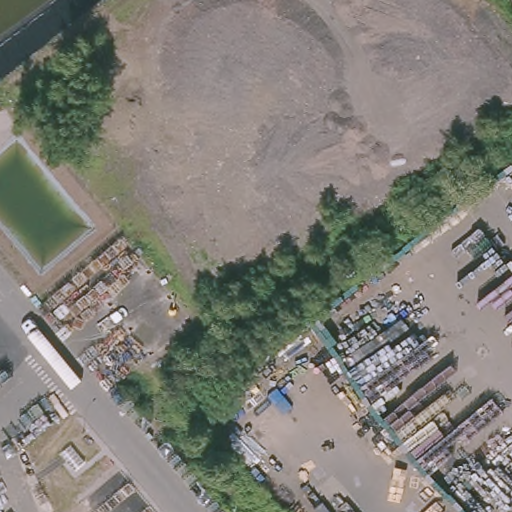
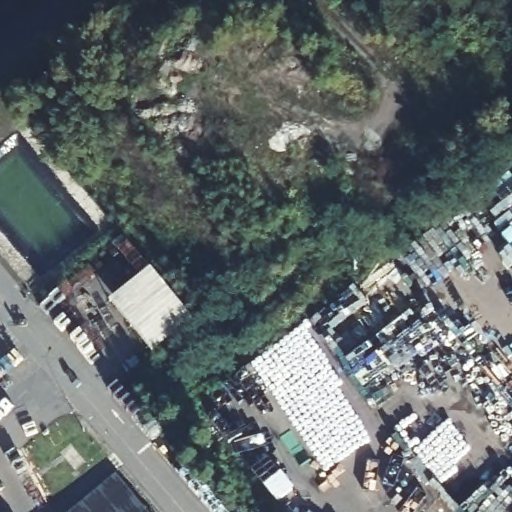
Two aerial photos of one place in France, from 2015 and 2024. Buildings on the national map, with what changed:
new [(109,300),(151,267),(194,319),(152,353),(109,300)]
new [(71,512),(116,474),(149,512),(71,512)]
demolished [(73,512),(88,499),(99,512),(73,512)]

